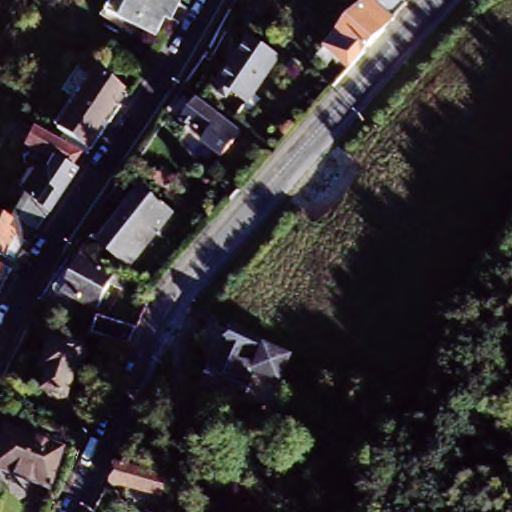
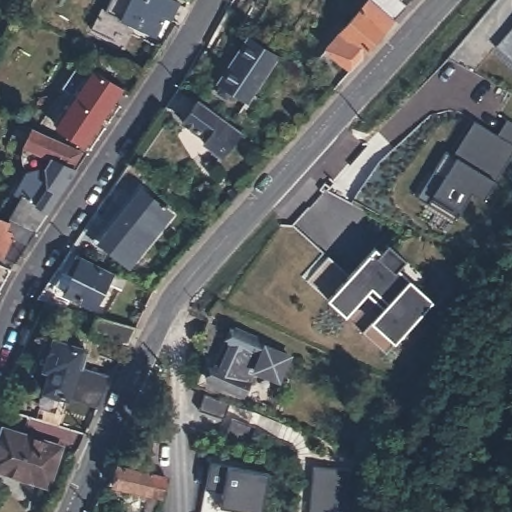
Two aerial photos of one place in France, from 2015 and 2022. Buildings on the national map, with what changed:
unchanged [(163,0),(179,8),(170,23),(164,20),(155,38),(103,12),(109,0),(163,0)]
unchanged [(396,0),(393,4),(404,12),(405,12),(391,26),(365,5),(358,0),(396,0)]
unchanged [(325,50),(365,5),(391,26),(350,71),(325,50)]
unchanged [(267,55),(243,86),(255,95),(237,119),(226,111),(235,99),(229,94),(225,99),(218,94),(221,89),(217,85),(215,87),(195,73),(207,55),(228,70),(249,41),(267,55)]
unchanged [(120,90),(82,145),(54,126),(92,71),(120,90)]
unchanged [(222,144),(216,151),(207,144),(210,141),(184,123),(169,111),(180,93),(197,105),(200,101),(225,120),(245,135),(233,151),(222,144)]
new [(477,193),(462,222),(422,200),(447,153),(455,157),(474,121),(498,135),(507,118),(512,120),(512,159),(490,200),(477,193)]
unchanged [(77,153),(67,168),(59,183),(47,176),(54,165),(42,159),(21,146),(30,130),(77,153)]
unchanged [(5,222),(8,217),(19,197),(13,194),(22,175),(37,171),(42,159),(54,165),(47,176),(59,183),(67,168),(72,171),(70,175),(59,192),(46,210),(32,230),(25,242),(12,260),(0,254),(0,219),(5,222)]
unchanged [(151,182),(158,173),(170,183),(164,192),(151,182)]
unchanged [(93,210),(112,222),(138,188),(171,213),(130,264),(105,247),(100,255),(74,237),(93,210)]
new [(380,254),(388,245),(407,262),(400,270),(410,279),(435,302),(395,345),(387,355),(361,333),(365,329),(350,316),(347,319),(327,301),(305,282),(329,257),(350,275),(375,249),(380,254)]
unchanged [(77,256),(112,273),(113,272),(125,278),(120,289),(108,282),(95,307),(64,292),(58,302),(39,297),(40,295),(49,281),(50,281),(54,284),(65,266),(61,263),(69,252),(77,256)]
unchanged [(2,275),(0,279),(0,274),(2,275)]
unchanged [(130,344),(94,333),(99,315),(139,327),(130,344)]
unchanged [(227,340),(212,367),(201,361),(200,360),(199,353),(197,348),(202,337),(205,330),(227,340)]
unchanged [(69,402),(65,400),(59,404),(45,399),(42,392),(37,390),(44,371),(34,368),(45,339),(74,348),(77,341),(84,344),(82,351),(87,353),(69,402)]
unchanged [(223,398),(207,390),(214,374),(218,376),(227,353),(227,350),(229,344),(232,342),(264,356),(287,366),(279,386),(255,376),(250,389),(249,391),(242,406),(223,398)]
unchanged [(47,482),(0,468),(0,433),(2,429),(10,431),(59,445),(47,482)]
new [(272,471),(266,512),(241,512),(242,509),(223,506),(225,491),(208,489),(212,462),(272,471)]
unchanged [(123,470),(152,477),(149,496),(97,485),(100,467),(121,470),(123,470)]
new [(352,473),(349,512),(311,512),(314,469),(352,473)]
unchanged [(138,501),(147,503),(146,511),(146,512),(135,512),(138,501)]

